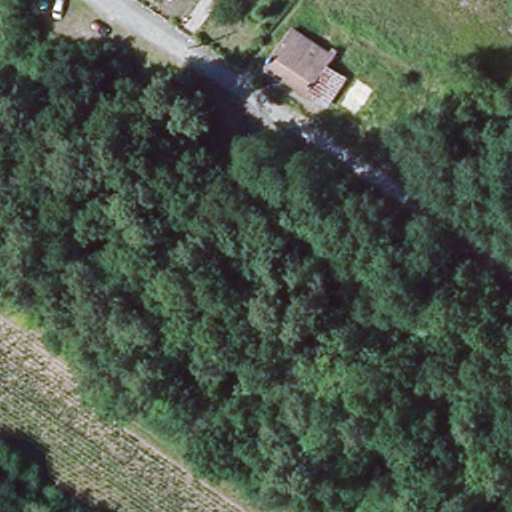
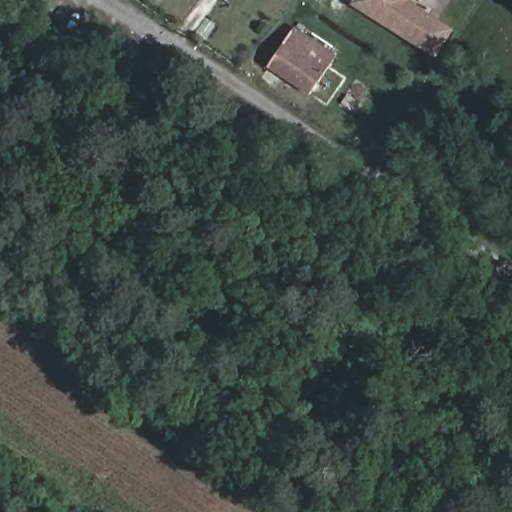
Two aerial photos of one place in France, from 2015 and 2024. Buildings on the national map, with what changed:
new [(350,4),(353,0),(410,0),(409,1),(454,30),(436,59),(350,4)]
unchanged [(329,60),(303,97),(263,69),(289,32),(329,60)]

